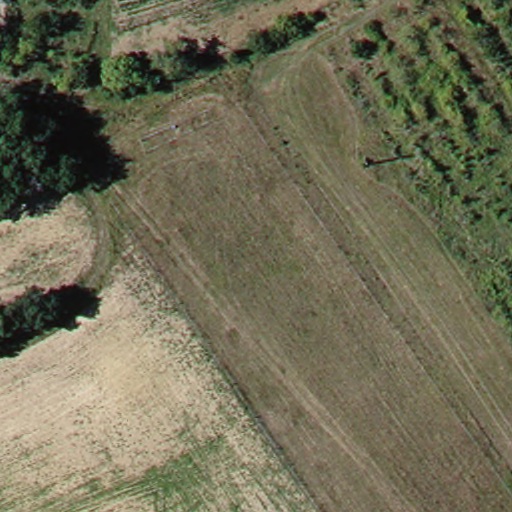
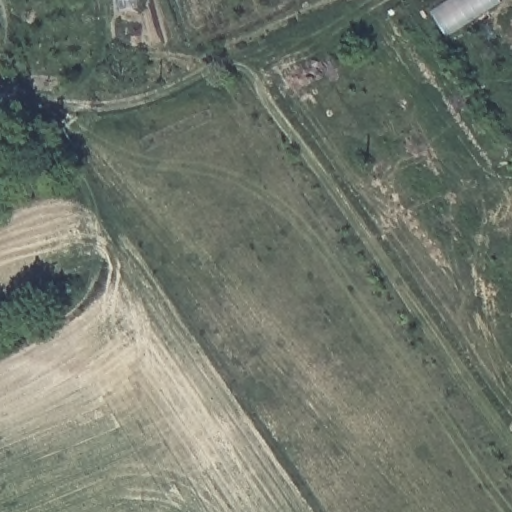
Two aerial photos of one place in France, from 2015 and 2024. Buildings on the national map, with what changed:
new [(431,12),(450,0),(500,0),(502,3),(448,38),(431,12)]

